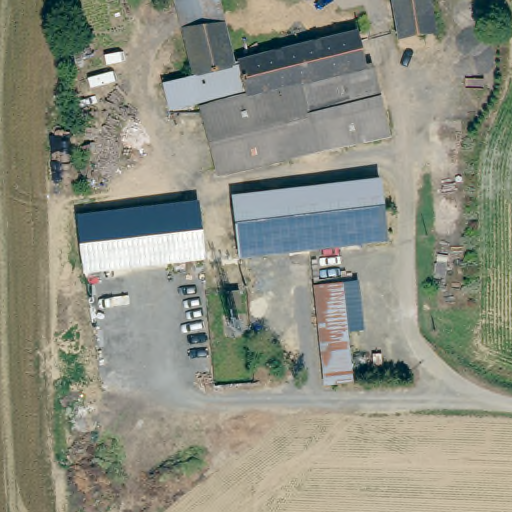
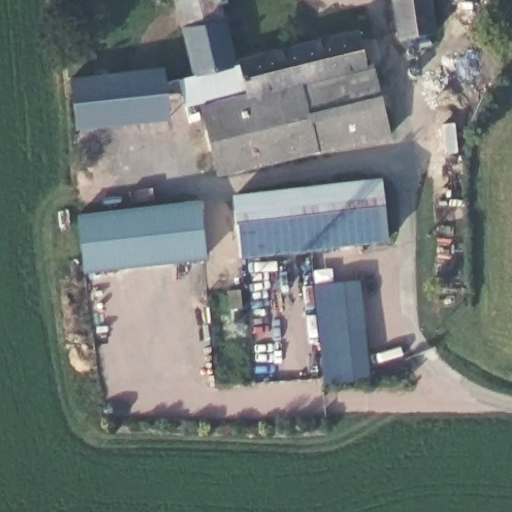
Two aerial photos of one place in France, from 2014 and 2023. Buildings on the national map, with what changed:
unchanged [(230,65),(188,75),(174,0),(216,0),(230,65)]
unchanged [(395,0),(429,0),(433,35),(424,36),(399,38),(395,0)]
unchanged [(355,35),(365,72),(368,71),(374,96),(332,105),(253,123),(246,92),(240,63),(355,35)]
new [(188,75),(230,65),(240,63),(246,92),(199,104),(187,108),(181,78),(188,75)]
new [(75,130),(69,78),(162,67),(169,120),(75,130)]
unchanged [(383,135),(217,176),(199,104),(246,92),(253,123),(332,105),(374,96),(383,135)]
unchanged [(382,238),(236,255),(229,200),(376,182),(382,238)]
unchanged [(82,272),(75,216),(199,202),(206,259),(82,272)]
unchanged [(306,287),(338,283),(348,380),(317,384),(306,287)]
unchanged [(227,311),(214,313),(212,295),(225,293),(227,311)]

